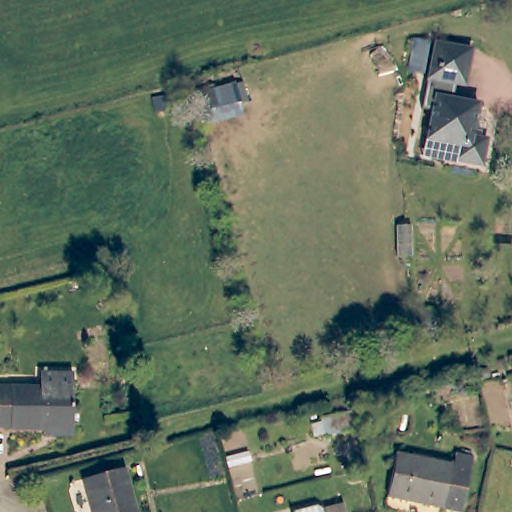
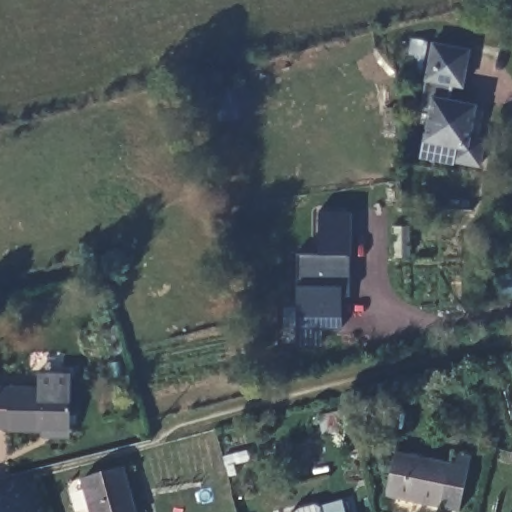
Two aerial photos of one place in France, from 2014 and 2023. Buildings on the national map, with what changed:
unchanged [(429,41),(466,48),(459,85),(449,84),(446,98),(473,103),(467,135),(482,138),(477,165),(450,160),(453,145),(421,140),(426,110),(416,108),(429,41)]
unchanged [(240,82),(246,102),(212,111),(214,121),(205,123),(197,94),(240,82)]
new [(351,254),(350,294),(343,294),(343,328),(296,327),(298,284),(299,253),(320,253),(320,211),(352,212),(351,254)]
unchanged [(38,430),(4,429),(4,427),(0,427),(0,387),(35,388),(35,373),(68,374),(67,389),(66,431),(66,437),(37,436),(38,430)]
unchanged [(319,418),(348,411),(352,429),(323,436),(319,418)]
unchanged [(453,465),(455,453),(471,457),(460,511),(387,496),(396,453),(453,465)]
unchanged [(135,512),(92,512),(83,479),(123,468),(135,512)]
unchanged [(314,512),(307,512),(312,511),(314,512)]

